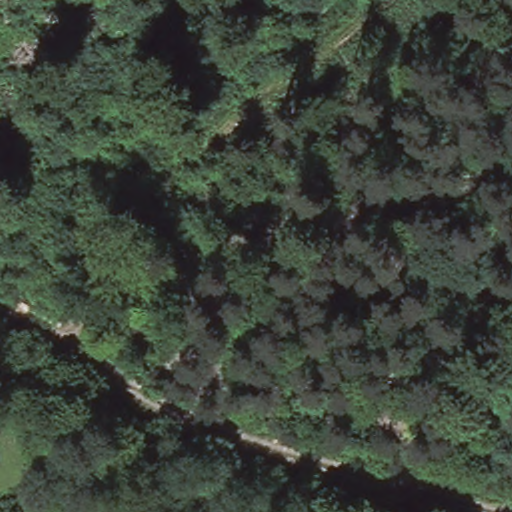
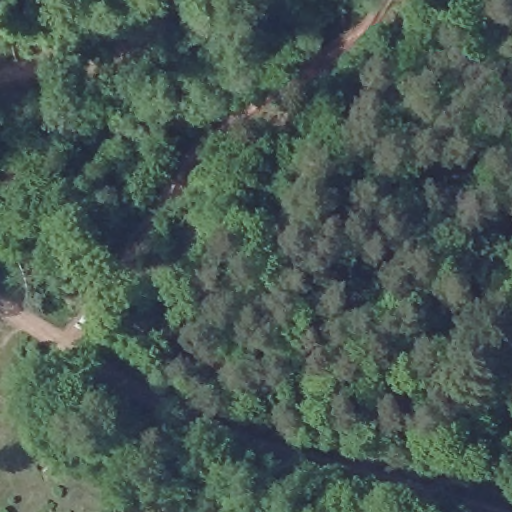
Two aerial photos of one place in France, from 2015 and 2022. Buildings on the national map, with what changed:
unchanged [(15,393),(13,399),(6,397),(8,390),(15,393)]

